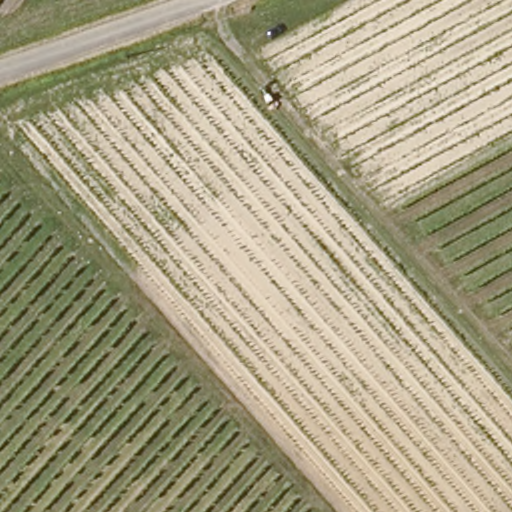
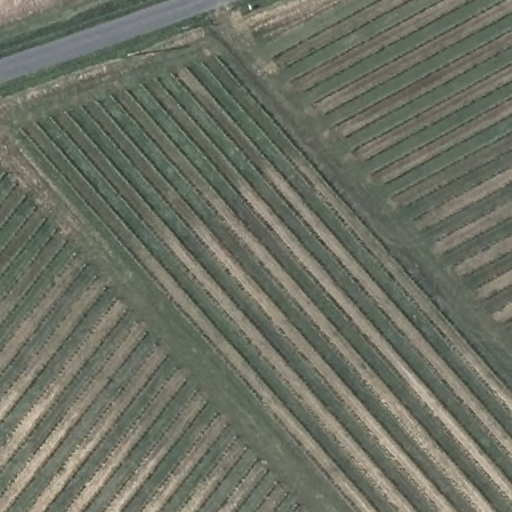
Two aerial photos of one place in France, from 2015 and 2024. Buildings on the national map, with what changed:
[]

